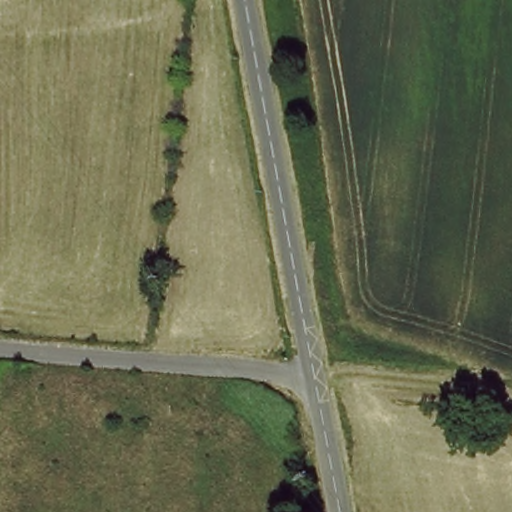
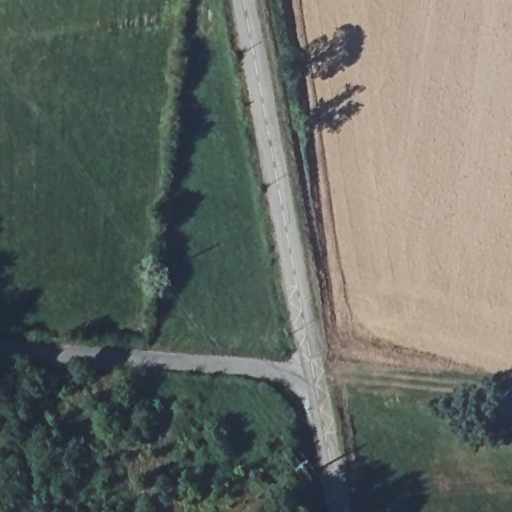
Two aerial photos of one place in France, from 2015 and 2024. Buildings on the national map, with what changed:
[]

